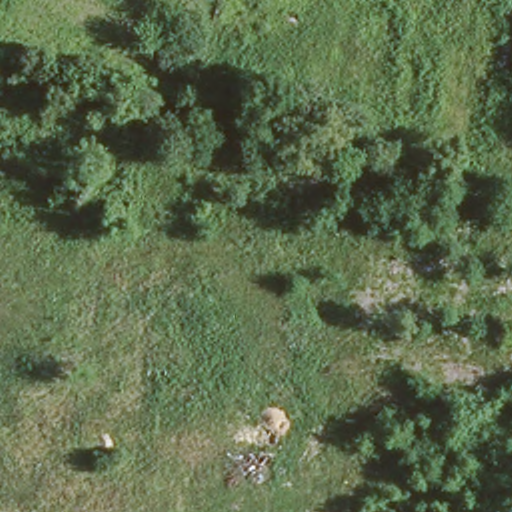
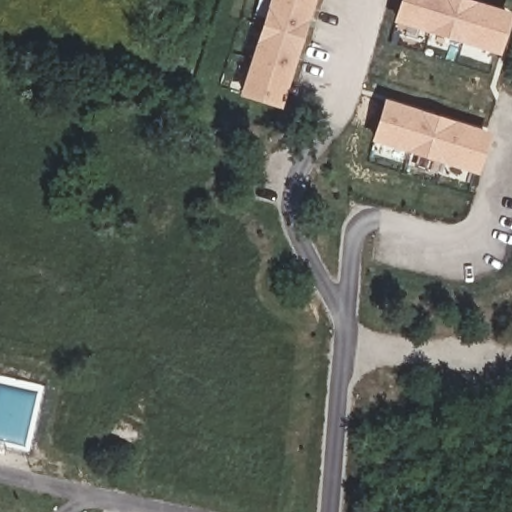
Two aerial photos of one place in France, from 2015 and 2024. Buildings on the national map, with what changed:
new [(287,101),(253,91),(282,0),(319,0),(287,101)]
new [(498,51),(397,20),(403,0),(455,0),(508,17),(498,51)]
new [(476,170),(376,139),(386,105),(487,136),(476,170)]

